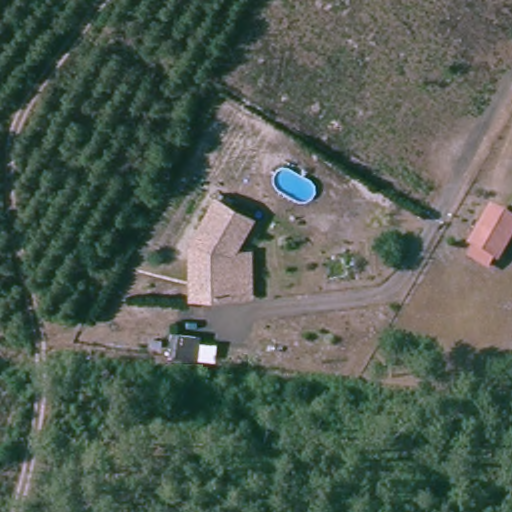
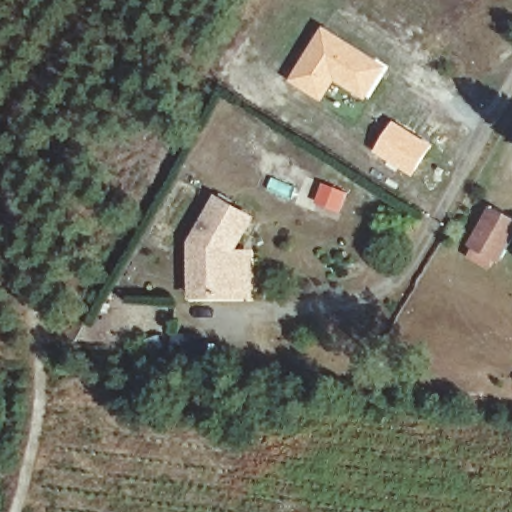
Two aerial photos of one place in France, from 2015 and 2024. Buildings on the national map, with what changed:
new [(324,25),(388,66),(364,101),(334,81),(319,102),(288,81),(324,25)]
new [(395,121),(430,144),(410,175),(374,151),(395,121)]
new [(340,213),(315,203),(323,182),(348,192),(340,213)]
unchanged [(244,298),(227,299),(187,299),(185,246),(209,201),(245,219),(227,256),(244,256),(244,298)]
unchanged [(474,239),(477,234),(493,205),(512,216),(512,244),(509,249),(503,257),(497,267),(468,251),(474,239)]

